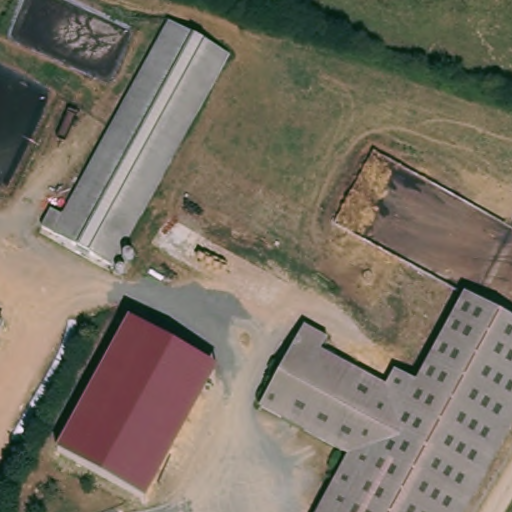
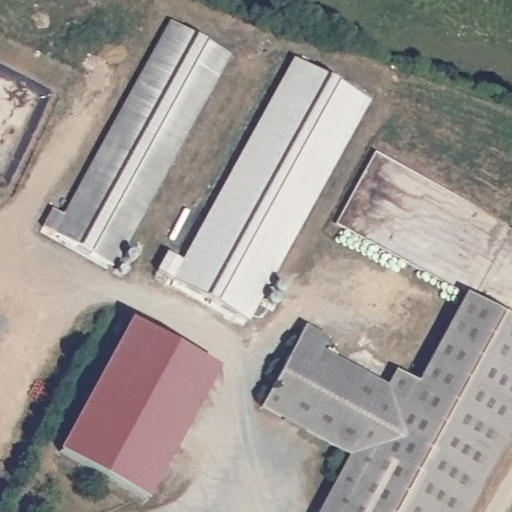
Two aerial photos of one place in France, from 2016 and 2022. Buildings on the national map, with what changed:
unchanged [(232,54),(166,167),(111,266),(40,225),(51,208),(66,216),(124,118),(177,23),(232,54)]
new [(248,323),(155,271),(165,253),(180,261),(291,60),(369,102),(248,323)]
unchanged [(312,512),(343,456),(254,407),(297,326),(318,337),(315,351),(380,386),(390,365),(412,375),(458,293),(512,322),(512,416),(460,512),(312,512)]
unchanged [(128,320),(216,368),(145,501),(56,451),(128,320)]
unchanged [(3,328),(0,333),(0,327),(3,328)]

